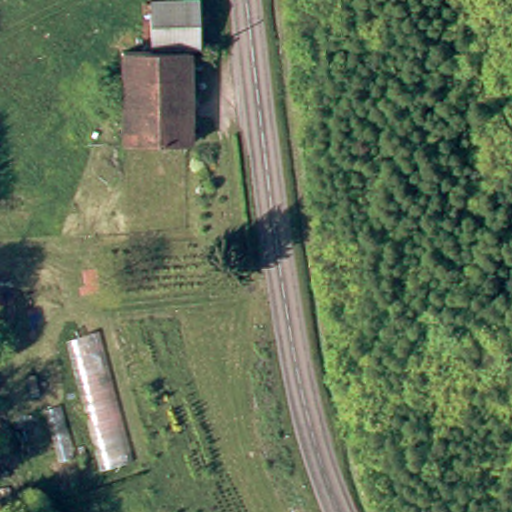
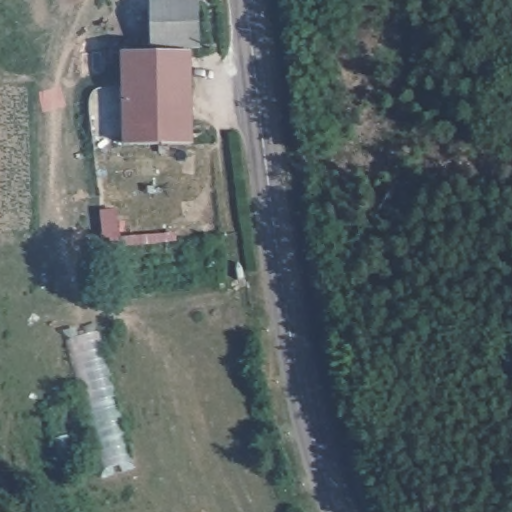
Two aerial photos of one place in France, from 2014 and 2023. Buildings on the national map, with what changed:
unchanged [(143,41),(141,7),(129,8),(129,0),(200,0),(203,39),(143,41)]
unchanged [(179,49),(187,137),(160,139),(161,150),(146,152),(144,139),(118,141),(116,114),(88,117),(86,84),(113,83),(111,54),(179,49)]
unchanged [(134,463),(100,471),(66,339),(100,330),(134,463)]

